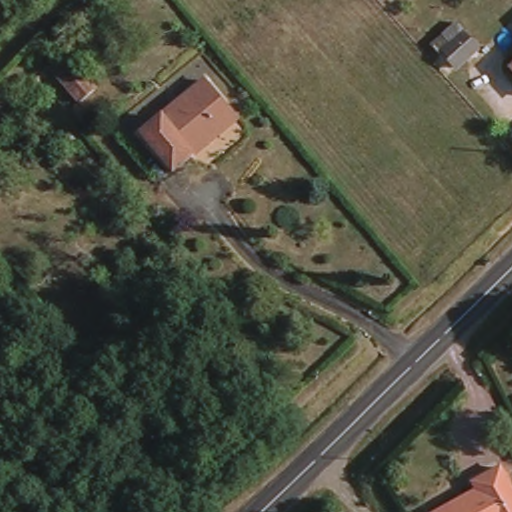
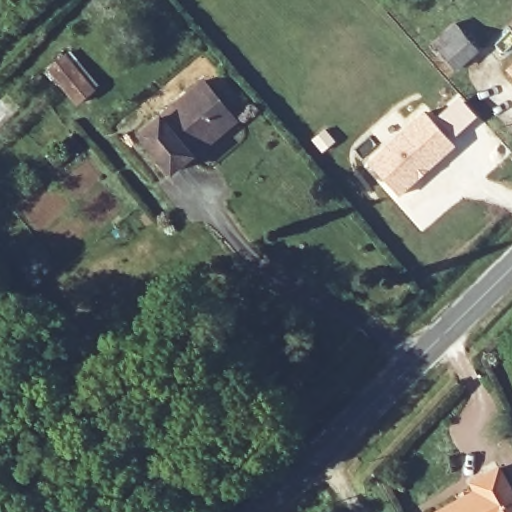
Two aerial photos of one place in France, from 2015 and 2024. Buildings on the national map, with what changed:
unchanged [(458,34),(473,47),(452,68),(440,53),(458,34)]
unchanged [(52,71),(69,57),(98,92),(81,106),(52,71)]
unchanged [(512,64),(512,70),(509,67),(512,64)]
unchanged [(169,175),(138,136),(210,81),(239,120),(169,175)]
new [(399,197),(368,162),(425,112),(456,146),(399,197)]
unchanged [(472,483),(499,469),(512,494),(512,512),(444,512),(478,495),(472,483)]

